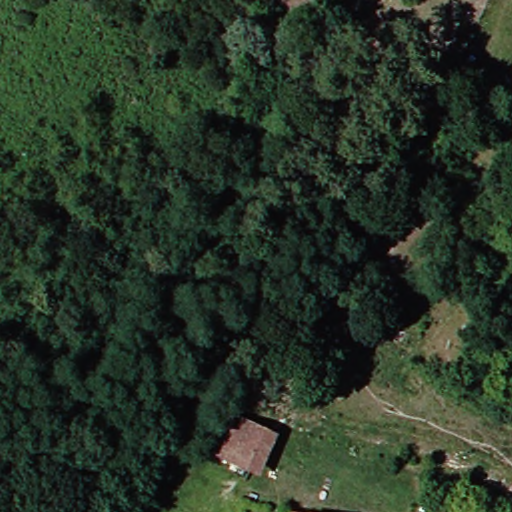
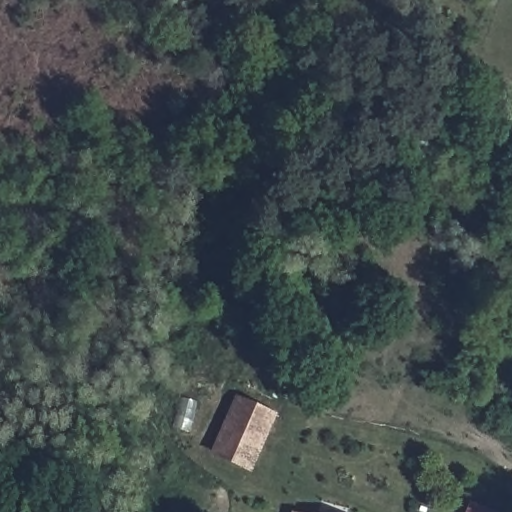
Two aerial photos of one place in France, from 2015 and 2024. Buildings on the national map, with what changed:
unchanged [(252,470),(214,452),(230,418),(268,436),(252,470)]

